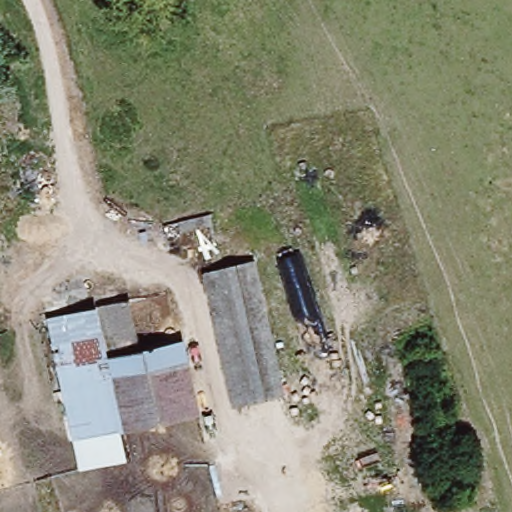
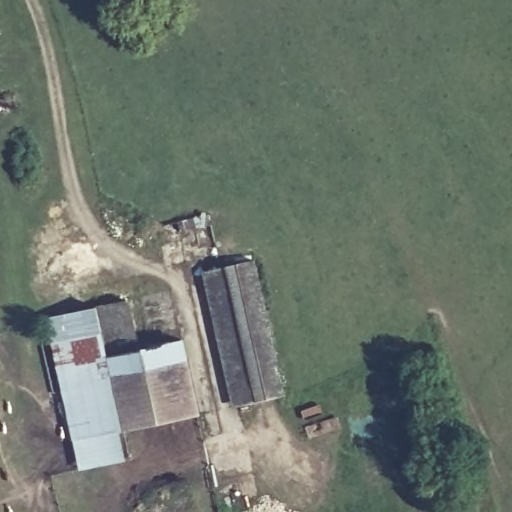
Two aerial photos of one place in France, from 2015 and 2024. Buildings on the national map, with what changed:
unchanged [(207,263),(249,254),(281,399),(239,408),(207,263)]
unchanged [(50,343),(48,319),(97,305),(129,301),(136,350),(182,338),(200,411),(125,429),(128,466),(82,475),(71,439),(50,343)]

